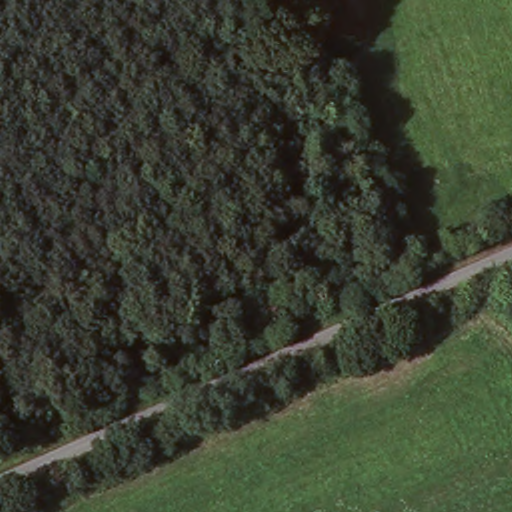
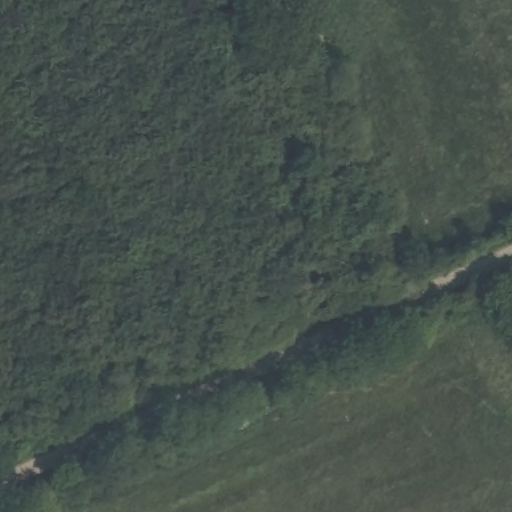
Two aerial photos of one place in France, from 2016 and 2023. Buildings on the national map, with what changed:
[]

